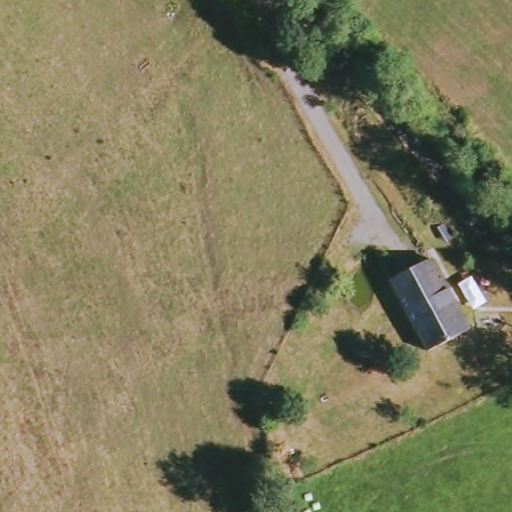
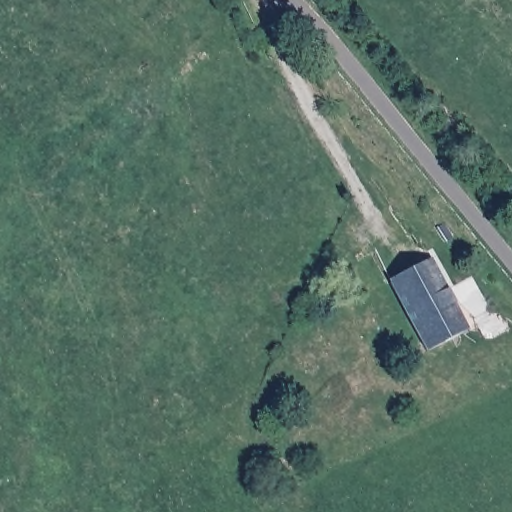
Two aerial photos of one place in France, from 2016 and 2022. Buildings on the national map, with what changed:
unchanged [(465,326),(425,349),(382,281),(425,257),(465,326)]

